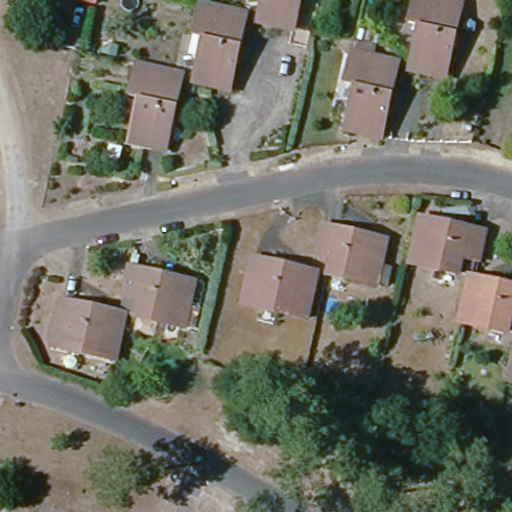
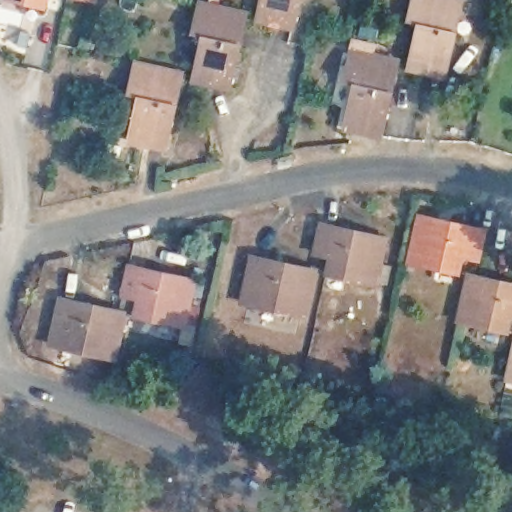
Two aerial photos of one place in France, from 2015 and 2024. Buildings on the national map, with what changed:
new [(7,1),(7,0),(47,0),(45,9),(7,1)]
unchanged [(94,0),(94,1),(87,0),(94,0)]
unchanged [(254,27),(254,22),(259,0),(296,0),(289,35),(272,31),(254,27)]
unchanged [(410,76),(409,75),(419,29),(409,27),(415,0),(431,0),(460,6),(455,24),(452,37),(442,83),(426,79),(410,76)]
unchanged [(207,92),(189,88),(190,82),(198,42),(188,40),(195,9),(241,19),(237,38),(234,50),(224,96),(207,92)]
unchanged [(346,135),(356,91),(345,88),(352,57),(396,67),(391,88),(389,97),(379,143),(346,135)]
unchanged [(126,148),(135,101),(125,99),(131,69),(176,79),(172,96),(169,109),(160,155),(126,148)]
unchanged [(474,260),(457,256),(453,272),(405,261),(414,217),(432,221),(444,223),(481,232),(474,260)]
unchanged [(370,290),(322,279),(325,264),(326,262),(310,258),(317,230),(334,234),(346,237),(381,245),(370,290)]
unchanged [(302,322),(237,308),(247,263),(282,270),(296,273),(312,277),(302,322)]
unchanged [(186,332),(136,322),(139,306),(140,304),(123,300),(129,271),(148,275),(161,278),(195,286),(186,332)]
unchanged [(502,337),(454,326),(452,325),(463,280),(470,280),(481,283),(494,286),(512,290),(512,322),(506,321),(502,337)]
unchanged [(115,365),(51,351),(60,306),(97,314),(111,317),(125,321),(115,365)]
unchanged [(512,334),(512,383),(502,380),(512,334)]

